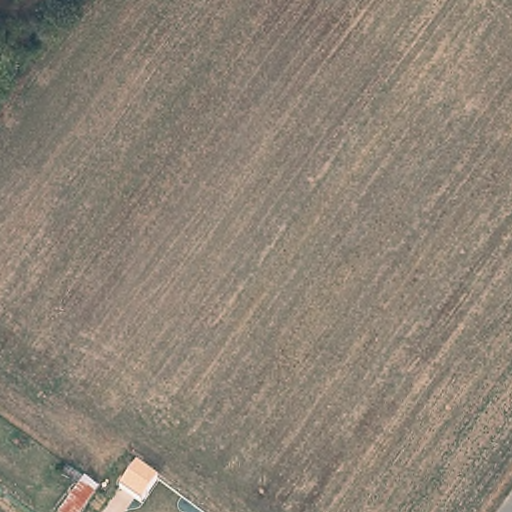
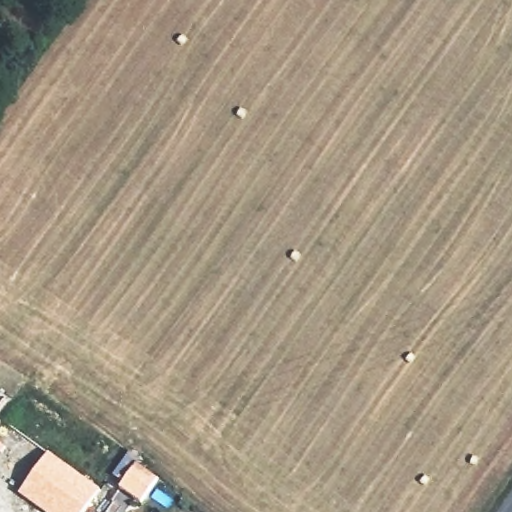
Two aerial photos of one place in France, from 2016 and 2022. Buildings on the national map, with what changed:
new [(42,512),(15,493),(47,451),(100,488),(83,512),(42,512)]
demolished [(81,512),(59,512),(84,475),(99,487),(81,512)]

